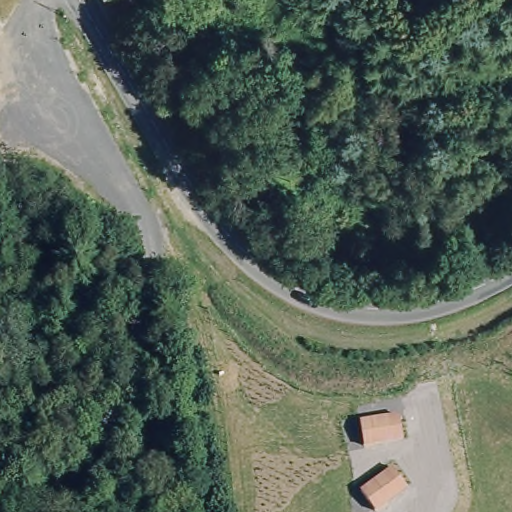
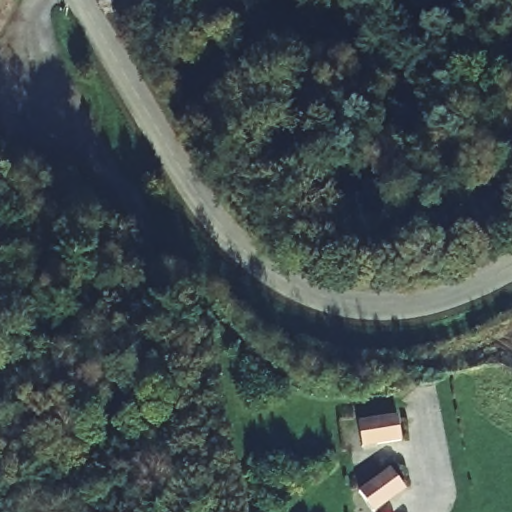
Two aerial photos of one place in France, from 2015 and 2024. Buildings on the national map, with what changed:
unchanged [(402,441),(363,447),(359,421),(398,415),(402,441)]
unchanged [(407,490),(375,512),(359,490),(392,468),(407,490)]

